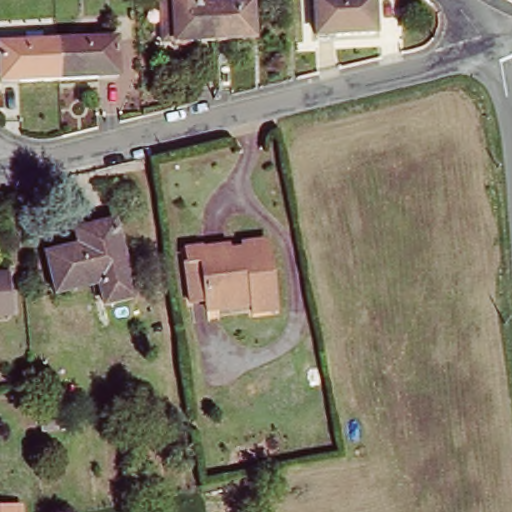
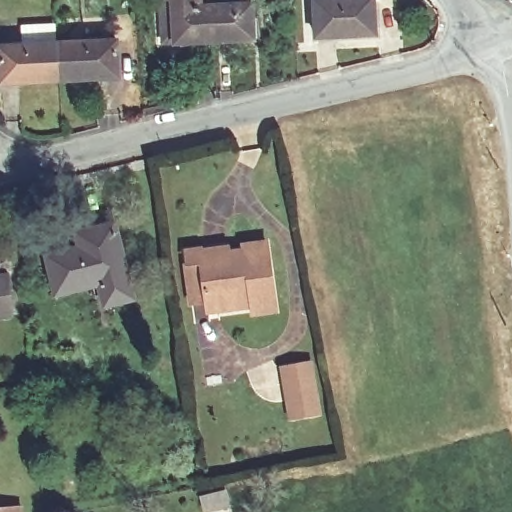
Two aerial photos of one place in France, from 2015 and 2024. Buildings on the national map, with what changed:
unchanged [(230,41),(190,44),(190,41),(179,42),(176,0),(227,0),(227,5),(230,41)]
unchanged [(324,0),(384,0),(385,34),(345,35),(326,36),(325,30),(324,0)]
unchanged [(227,5),(267,4),(269,39),(230,41),(227,5)]
unchanged [(70,80),(67,43),(127,40),(128,70),(127,77),(110,77),(70,80)]
unchanged [(9,46),(67,43),(70,80),(29,82),(10,82),(10,76),(9,46)]
unchanged [(63,276),(56,250),(90,242),(86,227),(96,225),(125,217),(144,293),(115,300),(110,277),(66,288),(63,276)]
unchanged [(216,301),(200,303),(195,265),(198,264),(196,250),(210,247),(211,250),(254,245),(276,241),(286,310),(263,313),(261,305),(218,311),(216,302),(216,301)]
unchanged [(17,275),(20,314),(0,316),(0,277),(17,275)]
new [(289,420),(286,401),(280,366),(310,362),(315,396),(319,416),(289,420)]
unchanged [(30,386),(15,388),(13,375),(28,374),(30,386)]
unchanged [(42,431),(40,419),(65,415),(67,428),(42,431)]
unchanged [(25,505),(31,505),(32,512),(0,512),(0,507),(25,505)]

